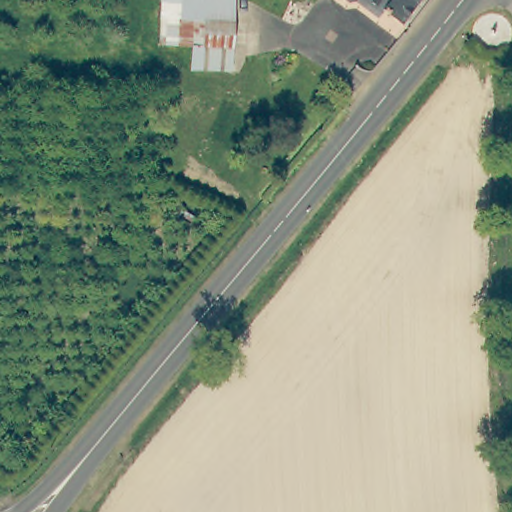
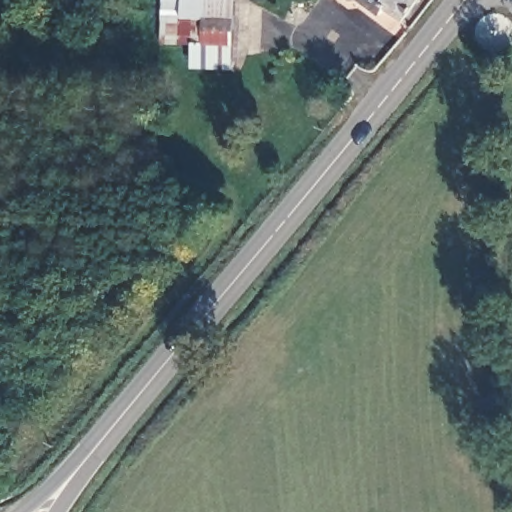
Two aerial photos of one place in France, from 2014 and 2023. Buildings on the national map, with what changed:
unchanged [(232,32),(229,69),(193,67),(194,46),(160,44),(162,0),(234,0),(232,32)]
unchanged [(400,22),(383,9),(378,15),(358,0),(416,0),(400,22)]

